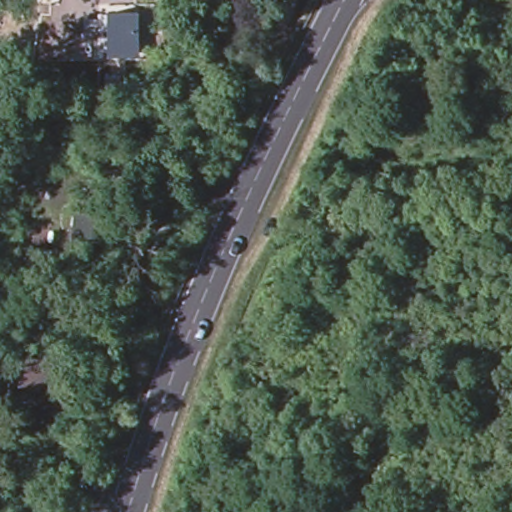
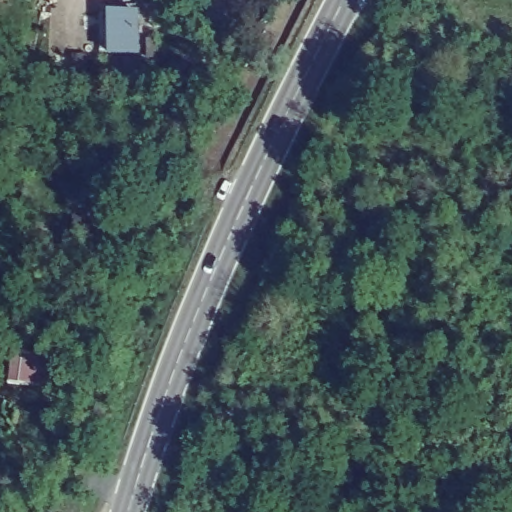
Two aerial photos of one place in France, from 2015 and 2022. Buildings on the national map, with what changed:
unchanged [(103,15),(113,15),(142,14),(142,55),(115,55),(105,55),(103,15)]
unchanged [(60,268),(52,267),(55,242),(63,243),(83,246),(80,271),(60,268)]
unchanged [(54,360),(52,385),(39,383),(38,389),(9,385),(10,377),(4,376),(5,365),(11,366),(12,359),(17,360),(17,356),(54,360)]

